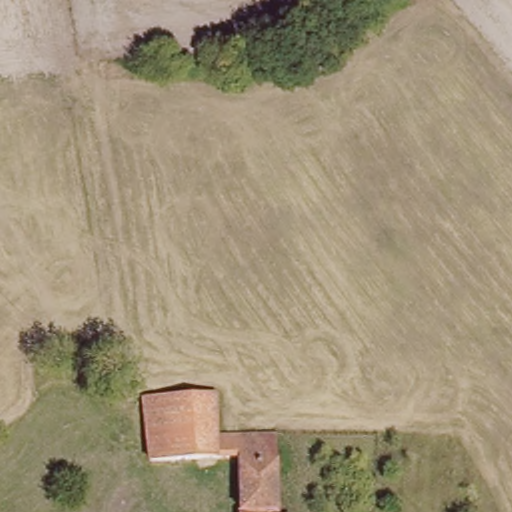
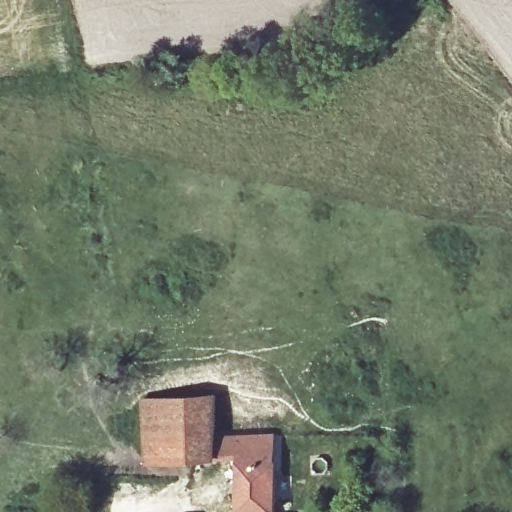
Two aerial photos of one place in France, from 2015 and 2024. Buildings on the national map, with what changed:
unchanged [(150,394),(214,393),(216,431),(263,432),(263,454),(274,456),(276,512),(240,512),(239,455),(150,454),(150,394)]

